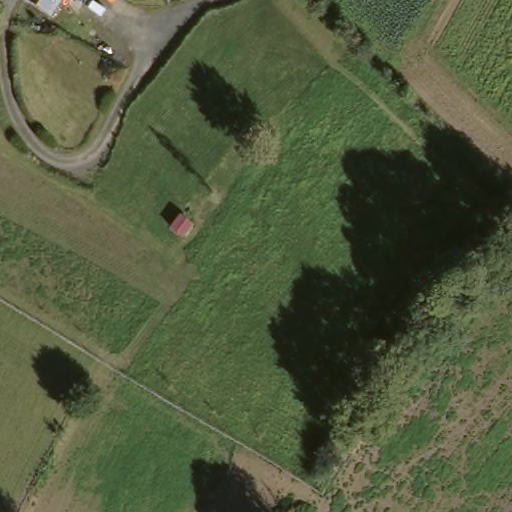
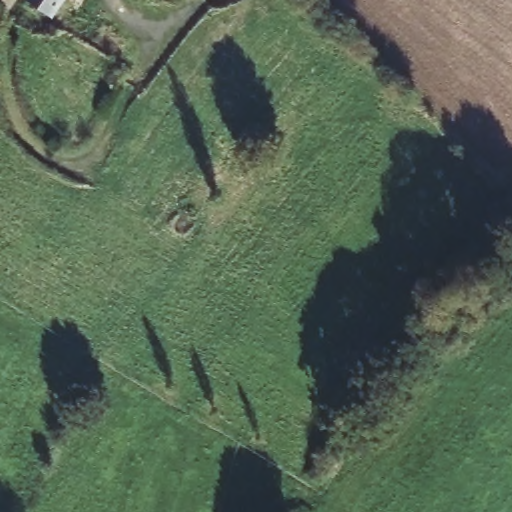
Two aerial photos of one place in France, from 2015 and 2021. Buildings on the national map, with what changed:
unchanged [(61,8),(55,3),(43,24),(21,9),(28,0),(66,0),(61,8)]

